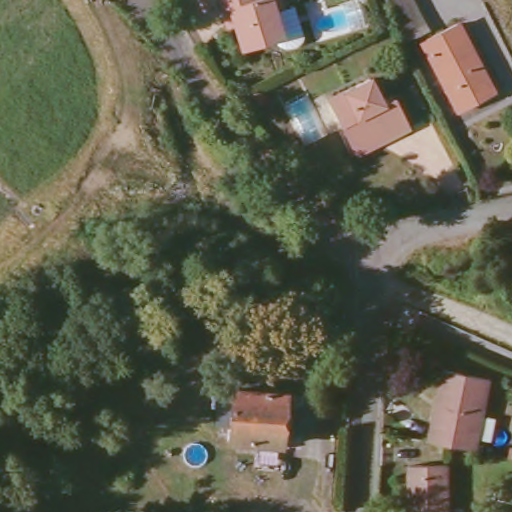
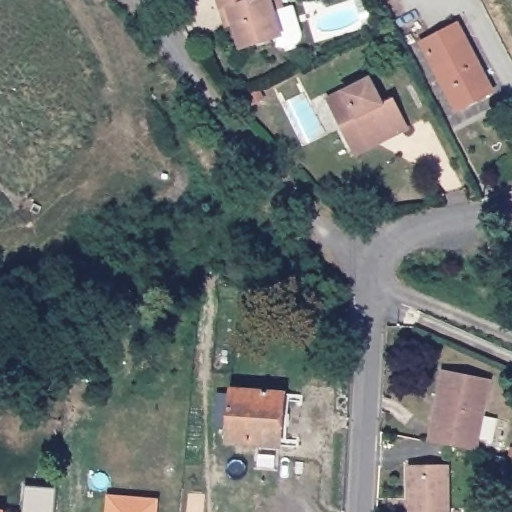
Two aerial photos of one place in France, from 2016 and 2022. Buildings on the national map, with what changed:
unchanged [(221,2),(220,0),(280,0),(281,4),(294,0),(301,36),(296,40),(285,43),(279,42),(275,38),(274,33),(241,42),(235,19),(226,21),(221,2)]
unchanged [(456,108),(420,39),(455,23),(490,91),(456,108)]
unchanged [(350,146),(328,108),(326,102),(343,94),(370,80),(382,104),(393,99),(409,128),(387,139),(355,156),(350,146)]
unchanged [(430,438),(445,365),(490,375),(476,447),(430,438)]
unchanged [(227,441),(232,391),(284,396),(279,446),(227,441)]
unchanged [(449,461),(449,512),(411,512),(411,461),(449,461)]
new [(58,487),(56,512),(24,512),(26,485),(58,487)]
new [(157,498),(156,512),(108,512),(110,495),(157,498)]
new [(0,512),(0,511),(10,512),(0,512)]

